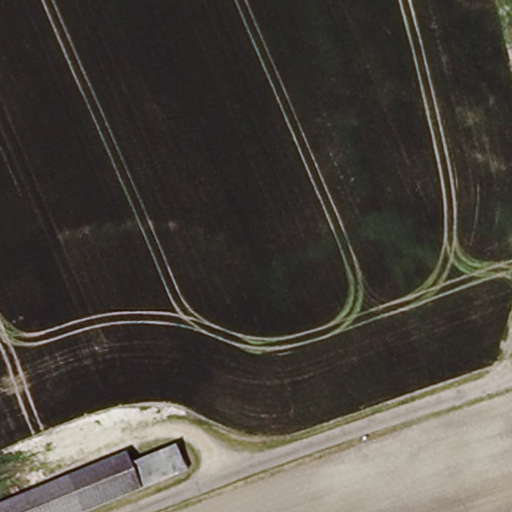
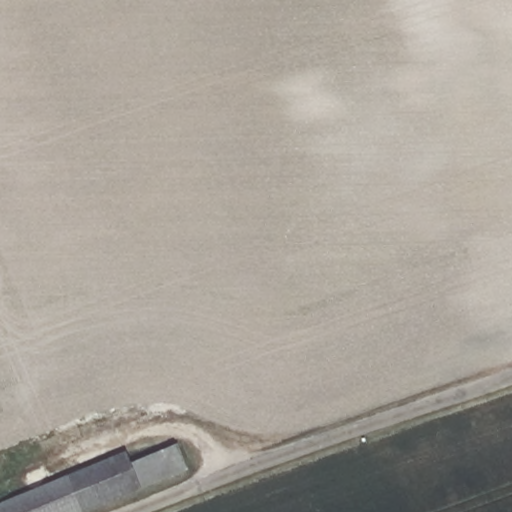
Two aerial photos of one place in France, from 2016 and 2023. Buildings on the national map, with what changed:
unchanged [(131,463),(175,446),(187,476),(100,512),(0,512),(0,500),(126,451),(131,463)]

